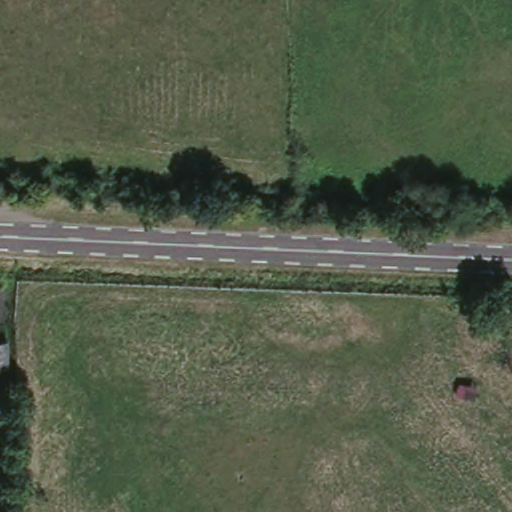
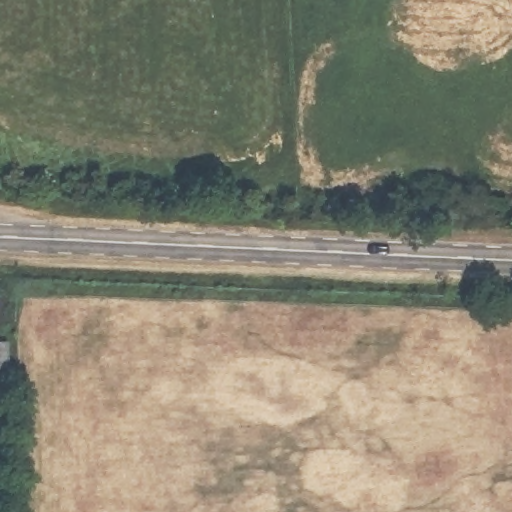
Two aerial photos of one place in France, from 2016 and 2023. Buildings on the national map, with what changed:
unchanged [(0,339),(11,340),(11,370),(2,370),(2,388),(0,388),(0,339)]

